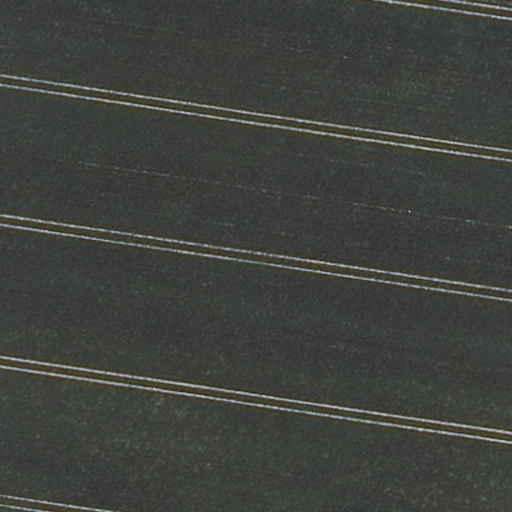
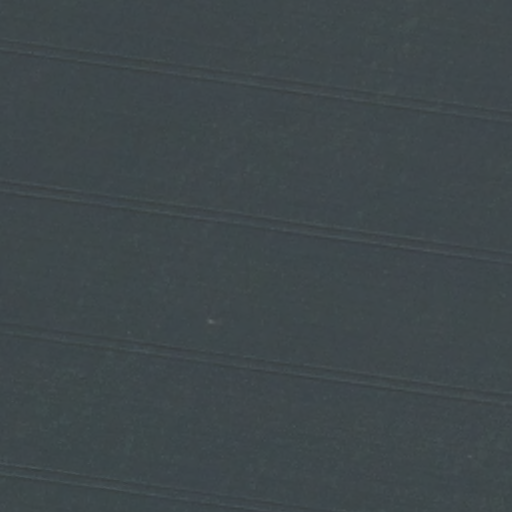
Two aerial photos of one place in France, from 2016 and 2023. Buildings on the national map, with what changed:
[]

